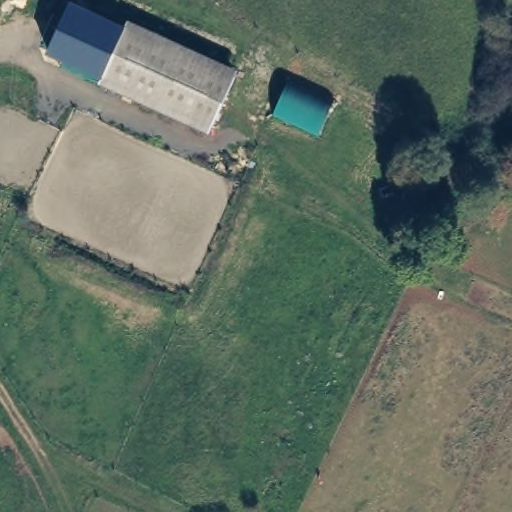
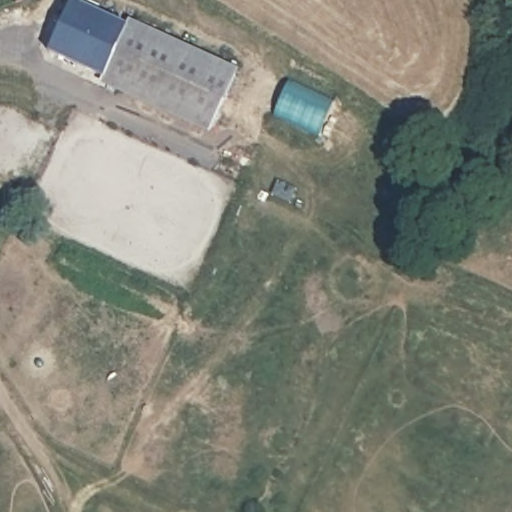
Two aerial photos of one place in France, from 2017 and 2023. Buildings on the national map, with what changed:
unchanged [(100,82),(102,77),(45,51),(71,0),(73,0),(125,25),(128,19),(237,70),(210,134),(100,82)]
unchanged [(320,136),(271,115),(287,80),(336,100),(320,136)]

